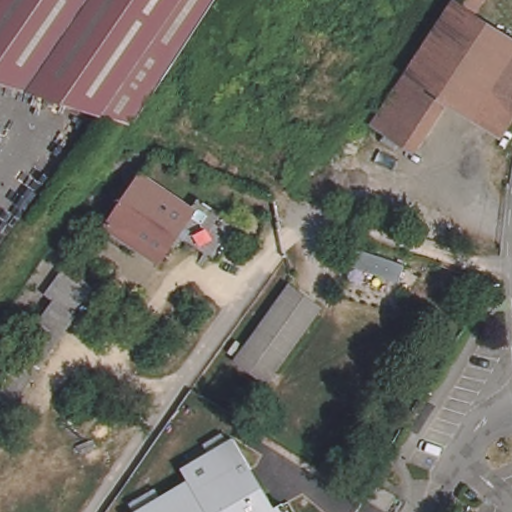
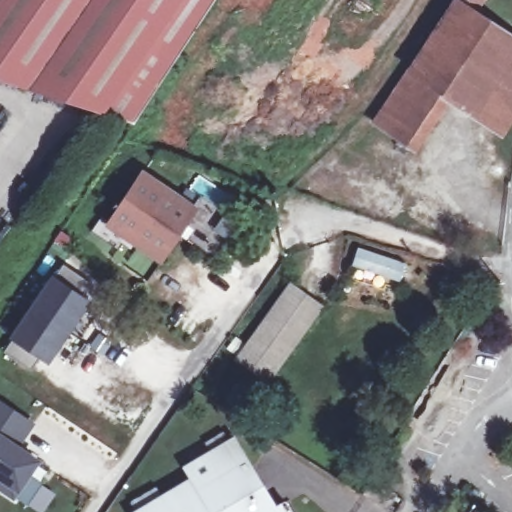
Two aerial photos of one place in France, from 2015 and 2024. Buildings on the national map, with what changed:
unchanged [(108,111),(50,92),(0,75),(0,0),(208,0),(132,119),(108,111)]
unchanged [(485,0),(470,25),(449,11),(456,0),(485,0)]
unchanged [(449,11),(470,25),(512,52),(512,123),(504,137),(444,102),(406,79),(449,11)]
unchanged [(444,102),(412,151),(374,130),(406,79),(444,102)]
unchanged [(155,184),(204,217),(172,263),(123,230),(155,184)]
new [(82,292),(92,298),(50,365),(39,357),(32,370),(5,351),(14,340),(11,338),(54,275),(55,276),(64,264),(90,283),(82,292)]
demolished [(52,300),(71,272),(98,292),(80,319),(52,300)]
unchanged [(295,281),(327,303),(273,378),(242,356),(295,281)]
demolished [(0,408),(0,375),(16,351),(47,373),(16,418),(0,408)]
new [(22,446),(40,460),(19,493),(14,499),(0,490),(0,400),(35,424),(22,446)]
unchanged [(238,440),(255,469),(246,475),(267,512),(143,512),(197,481),(190,468),(238,440)]
unchanged [(386,486),(404,497),(394,512),(392,512),(375,501),(386,486)]
unchanged [(285,504),(290,512),(271,512),(285,504)]

